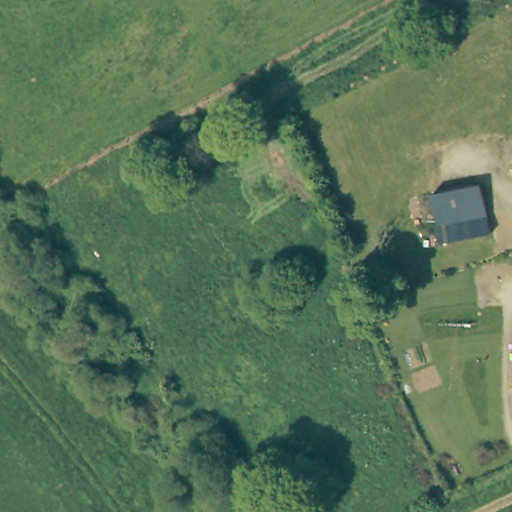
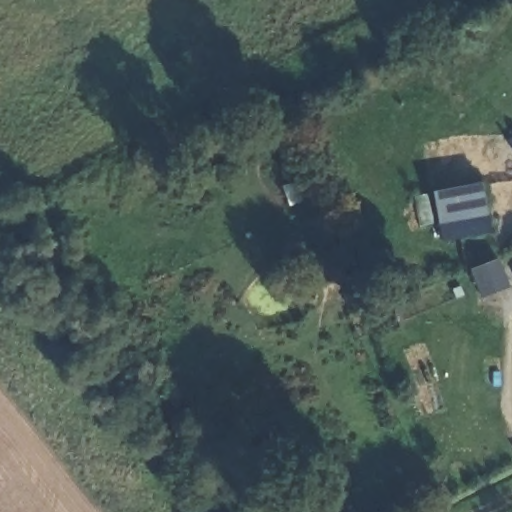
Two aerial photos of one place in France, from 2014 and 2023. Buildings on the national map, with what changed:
unchanged [(436,192),(485,184),(493,234),(446,242),(436,192)]

